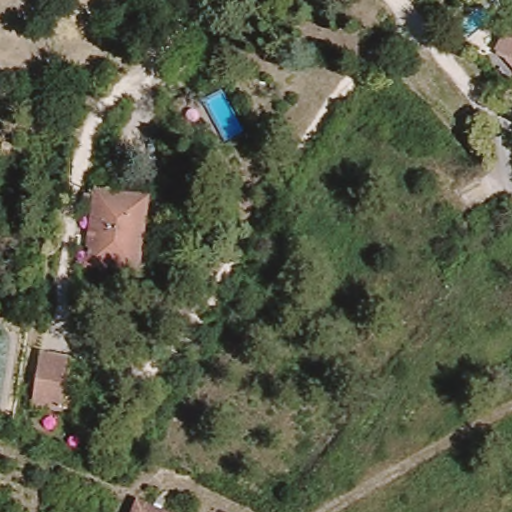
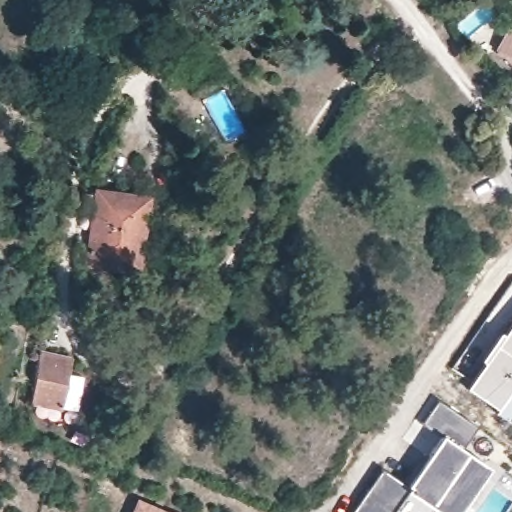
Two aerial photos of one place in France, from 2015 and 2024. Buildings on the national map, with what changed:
unchanged [(509,27),(512,29),(512,53),(501,47),(509,27)]
unchanged [(141,270),(91,265),(99,190),(150,198),(141,270)]
new [(480,361),(501,331),(504,333),(512,322),(512,418),(509,422),(465,390),(483,363),(480,361)]
unchanged [(38,350),(69,355),(61,406),(30,401),(38,350)]
new [(411,482),(444,432),(426,420),(442,395),(480,420),(464,445),(486,461),(453,511),(435,500),(426,512),(356,512),(386,466),(411,482)]
unchanged [(150,510),(149,512),(130,512),(134,503),(150,510)]

